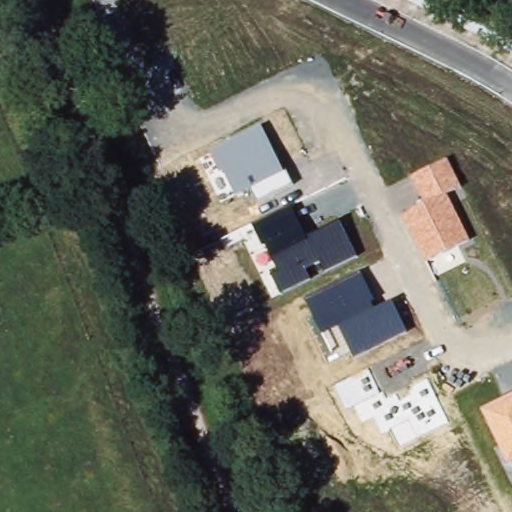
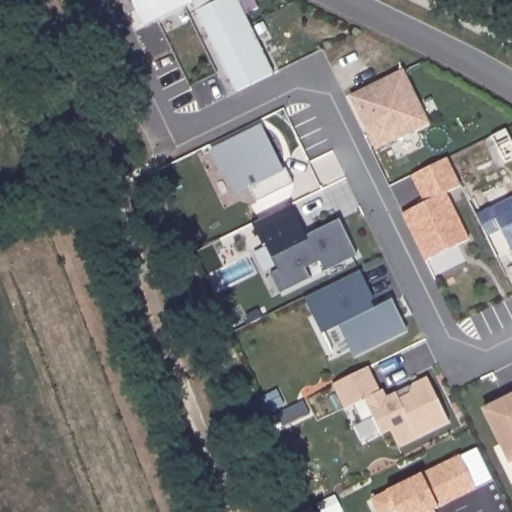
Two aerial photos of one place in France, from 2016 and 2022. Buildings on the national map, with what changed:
new [(145,29),(131,0),(191,0),(191,1),(193,0),(208,0),(211,6),(222,0),(237,0),(250,26),(212,45),(196,13),(197,13),(193,5),(145,29)]
new [(250,26),(274,75),(236,94),(212,45),(250,26)]
new [(403,73),(428,125),(376,150),(351,98),(403,73)]
unchanged [(225,171),(220,174),(208,153),(262,126),(292,187),(258,203),(252,189),(237,195),(225,171)]
unchanged [(402,215),(426,202),(412,177),(448,159),(462,188),(448,196),(469,240),(426,263),(402,215)]
unchanged [(271,274),(277,271),(266,245),(265,246),(263,247),(253,226),(295,206),(311,236),(341,222),(357,257),(324,274),(319,264),(307,270),(312,280),(281,295),(271,274)]
unchanged [(339,326),(322,334),(306,301),(363,275),(379,308),(393,302),(405,333),(354,360),(339,326)]
new [(381,392),(384,391),(387,398),(397,394),(414,385),(428,378),(450,423),(399,447),(391,431),(383,435),(374,418),(363,423),(354,406),(346,410),(334,385),(369,368),(381,392)]
unchanged [(481,409),(512,394),(512,462),(509,464),(481,409)]
new [(373,500),(461,456),(478,490),(435,511),(436,512),(378,512),(373,500)]

